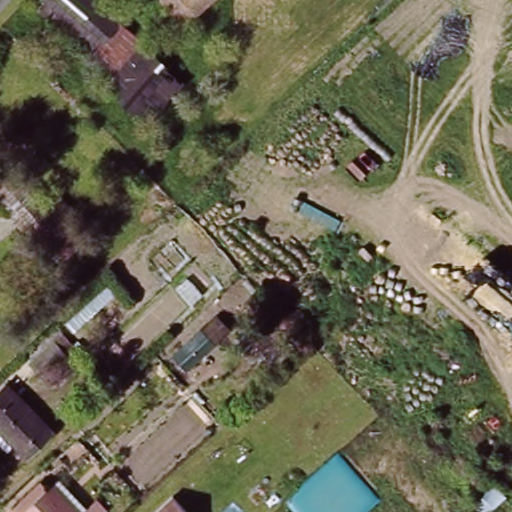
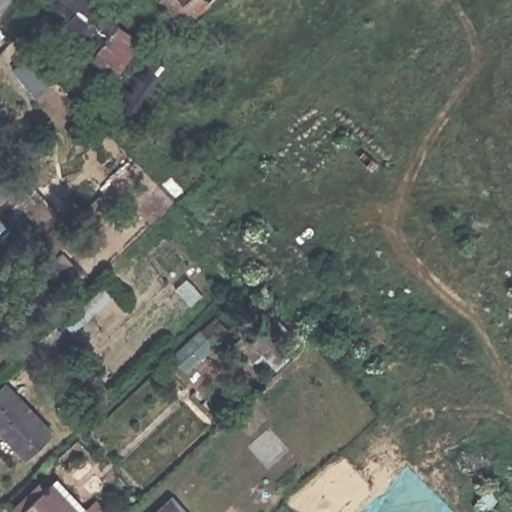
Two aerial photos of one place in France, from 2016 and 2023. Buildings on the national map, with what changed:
unchanged [(180,75),(139,121),(100,89),(108,83),(83,64),(92,45),(36,1),(36,0),(99,0),(118,17),(180,75)]
unchanged [(156,0),(207,0),(179,25),(156,1),(156,0)]
unchanged [(35,248),(0,211),(0,182),(13,170),(63,222),(35,248)]
unchanged [(171,356),(216,314),(229,329),(184,369),(171,356)]
unchanged [(23,454),(0,430),(0,382),(4,379),(51,428),(23,454)]
unchanged [(76,512),(19,512),(11,504),(40,476),(76,512)]
unchanged [(172,494),(189,512),(153,512),(172,494)]
unchanged [(87,508),(92,512),(83,512),(87,508)]

